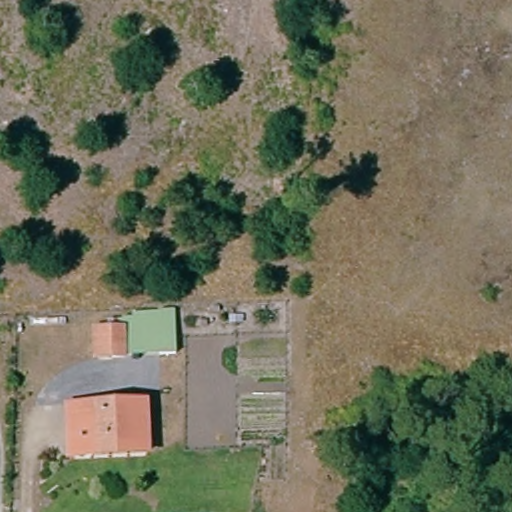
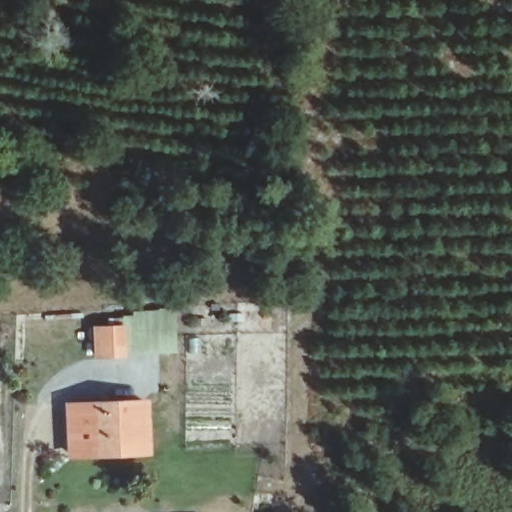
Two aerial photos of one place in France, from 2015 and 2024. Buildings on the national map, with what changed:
unchanged [(175,356),(102,359),(100,323),(139,321),(139,310),(172,309),(175,356)]
unchanged [(139,456),(81,457),(79,404),(139,404),(139,456)]

